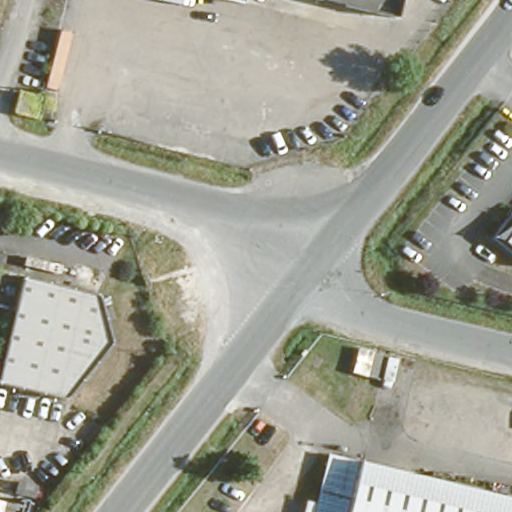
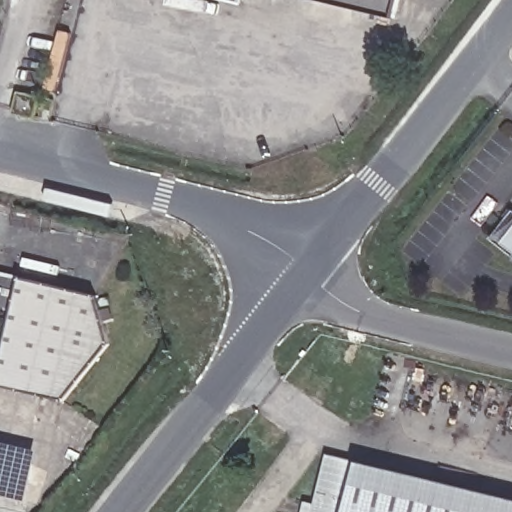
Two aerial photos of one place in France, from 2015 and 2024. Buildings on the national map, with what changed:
unchanged [(225,0),(233,0),(232,2),(225,0)]
unchanged [(320,0),(394,0),(390,18),(320,0)]
unchanged [(6,107),(11,87),(38,95),(34,113),(6,107)]
unchanged [(512,214),(512,255),(491,236),(512,214)]
unchanged [(72,399),(0,381),(0,364),(14,306),(0,302),(0,268),(113,298),(116,342),(72,399)]
new [(0,494),(0,441),(38,450),(26,501),(0,494)]
unchanged [(297,499),(310,502),(323,451),(512,497),(512,512),(294,512),(297,499)]

